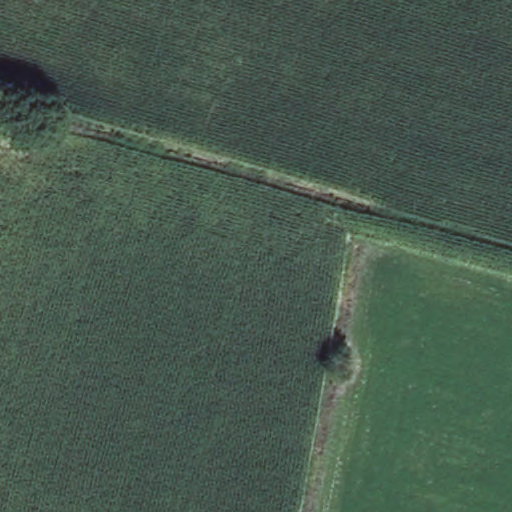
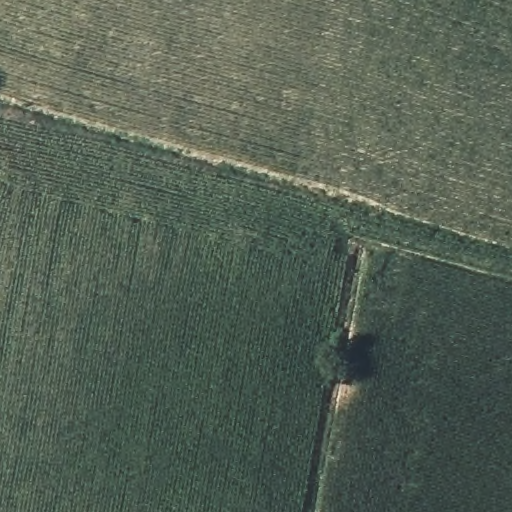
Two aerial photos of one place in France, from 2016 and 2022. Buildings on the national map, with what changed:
[]

